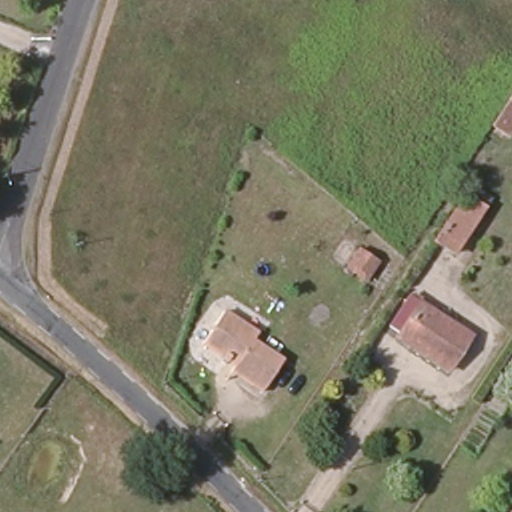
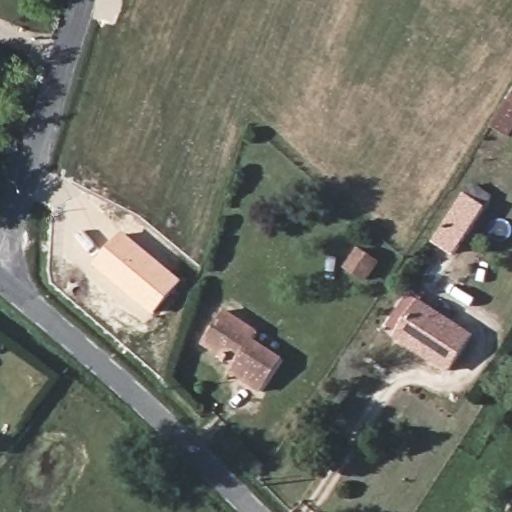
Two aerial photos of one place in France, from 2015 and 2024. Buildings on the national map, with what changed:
unchanged [(512,93),(512,103),(507,100),(512,93)]
unchanged [(453,247),(437,235),(465,194),(481,204),(453,247)]
new [(155,315),(94,266),(123,232),(183,281),(155,315)]
unchanged [(343,268),(358,246),(383,262),(365,283),(343,268)]
unchanged [(467,333),(445,369),(393,336),(396,332),(388,325),(407,295),(467,333)]
unchanged [(256,332),(252,340),(280,360),(260,390),(229,368),(231,364),(201,342),(223,310),(256,332)]

